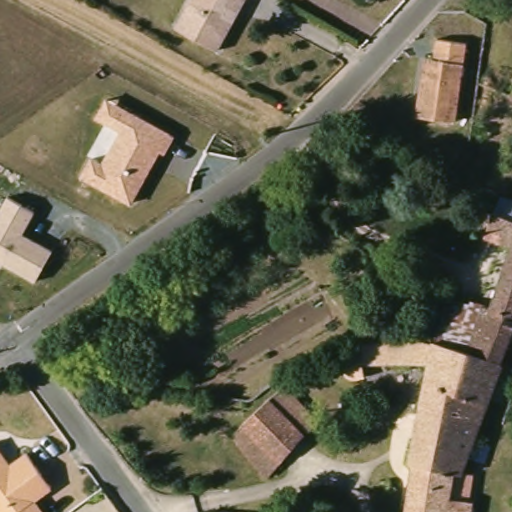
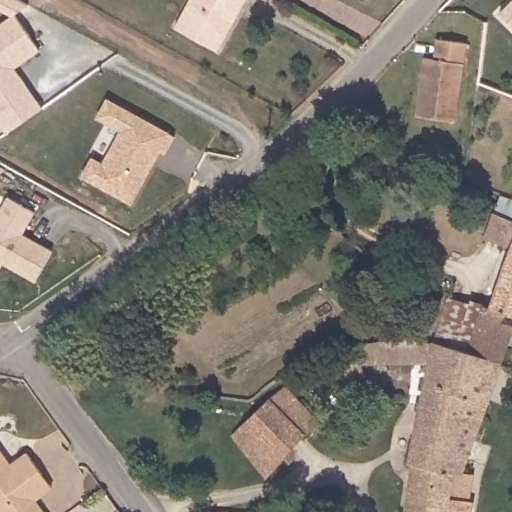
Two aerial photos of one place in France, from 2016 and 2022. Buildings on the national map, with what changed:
unchanged [(219,54),(171,27),(187,0),(248,0),(238,18),(226,39),(219,54)]
new [(0,23),(15,13),(41,48),(15,67),(44,106),(7,132),(0,122),(0,23)]
unchanged [(425,58),(435,59),(438,39),(467,43),(457,121),(418,116),(425,58)]
unchanged [(81,177),(91,155),(103,161),(120,130),(98,118),(108,98),(177,134),(166,156),(161,153),(133,203),(81,177)]
new [(0,165),(6,168),(0,172),(0,165)]
unchanged [(0,210),(8,197),(36,213),(24,235),(54,251),(37,281),(0,261),(0,210)]
unchanged [(485,236),(494,211),(503,214),(512,219),(512,248),(485,236)]
unchanged [(491,307),(512,248),(512,335),(501,364),(467,352),(483,304),(491,307)]
unchanged [(434,341),(450,293),(483,304),(467,352),(434,341)]
unchanged [(449,497),(472,501),(470,512),(407,512),(410,494),(415,465),(415,463),(411,462),(430,361),(402,361),(362,362),(365,376),(360,378),(354,378),(350,375),(347,368),(347,361),(354,356),(361,354),(360,343),(400,338),(407,338),(411,338),(419,340),(427,341),(434,343),(434,341),(467,352),(501,364),(462,474),(453,472),(449,497)]
unchanged [(269,403),(284,391),(319,428),(303,441),(269,403)]
unchanged [(247,424),(269,403),(303,441),(284,464),(247,424)]
unchanged [(268,482),(233,438),(247,424),(284,464),(268,482)]
unchanged [(28,453),(53,487),(18,512),(0,512),(0,451),(11,465),(28,453)]
unchanged [(44,512),(18,512),(36,499),(44,512)]

